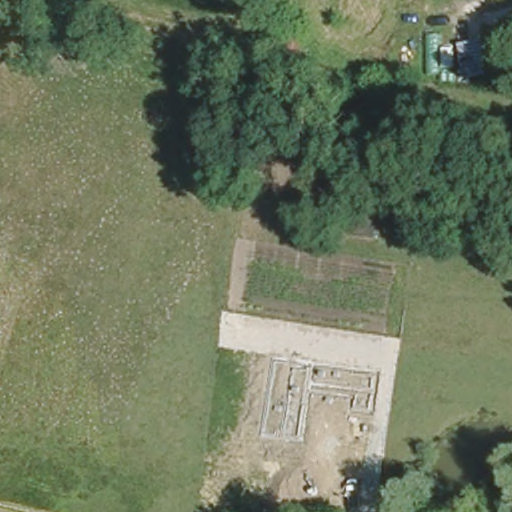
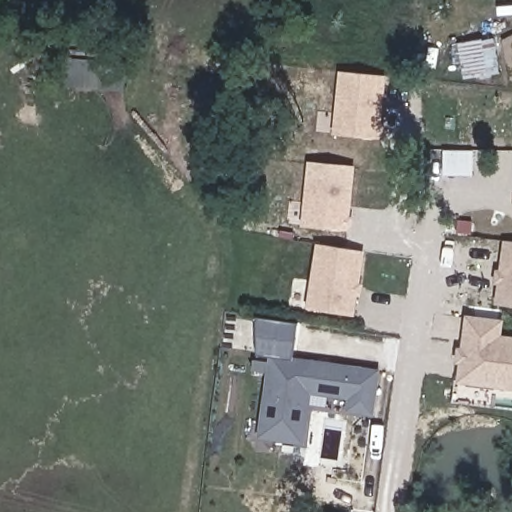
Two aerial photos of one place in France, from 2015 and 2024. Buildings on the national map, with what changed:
new [(462,80),(452,45),(495,36),(500,71),(462,80)]
new [(338,71),(387,76),(381,140),(331,133),(338,71)]
new [(307,161),(356,166),(349,231),(302,226),(307,161)]
new [(512,242),(512,306),(499,304),(507,241),(512,242)]
new [(358,249),(349,312),(305,307),(315,242),(358,249)]
new [(502,322),(500,337),(512,338),(512,387),(461,382),(468,317),(502,322)]
new [(372,417),(345,413),(347,401),(312,396),(303,446),(257,438),(270,352),(380,368),(372,417)]

